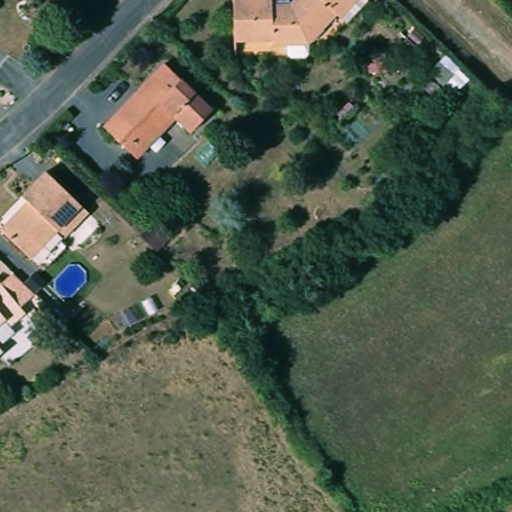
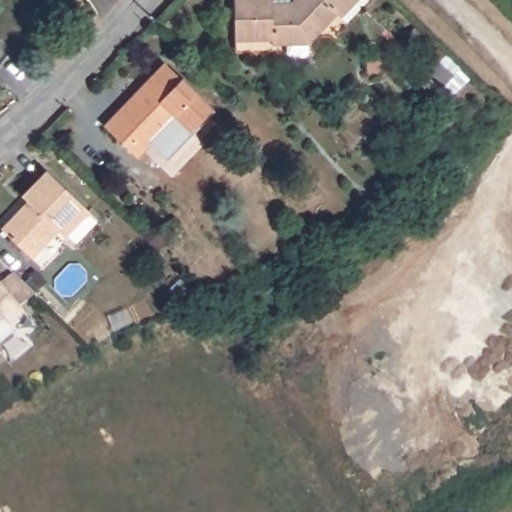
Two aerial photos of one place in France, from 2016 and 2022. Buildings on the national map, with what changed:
unchanged [(299,0),(359,0),(344,15),(340,11),(314,39),(304,30),(289,45),(275,45),(274,40),(239,41),(239,0),(274,0),(274,4),(284,4),(291,8),(299,0)]
unchanged [(429,71),(439,62),(432,55),(439,47),(472,79),(456,95),(429,71)]
unchanged [(138,158),(124,146),(101,125),(161,61),(210,107),(189,130),(178,117),(154,142),(138,158)]
unchanged [(24,191),(46,169),(89,209),(64,234),(71,240),(45,266),(1,225),(30,196),(24,191)]
unchanged [(166,246),(153,260),(140,247),(154,234),(166,246)]
unchanged [(10,327),(9,328),(3,322),(0,324),(0,282),(26,315),(10,327)]

